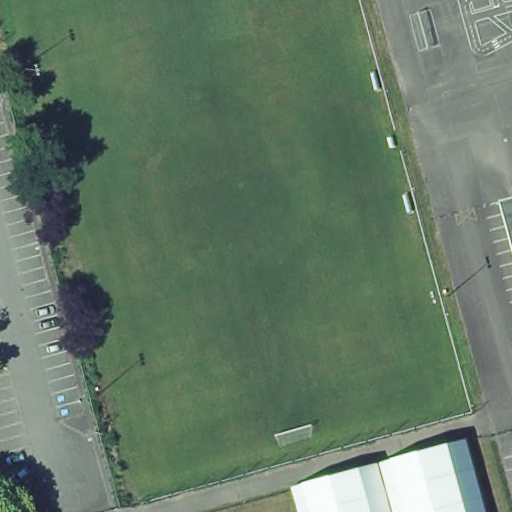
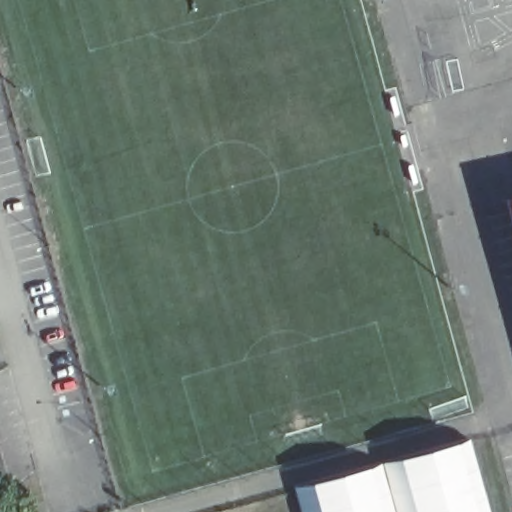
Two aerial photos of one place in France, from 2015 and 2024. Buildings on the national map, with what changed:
unchanged [(507,200),(512,199),(512,216),(507,200)]
unchanged [(489,512),(298,512),(292,491),(469,441),(489,512)]

